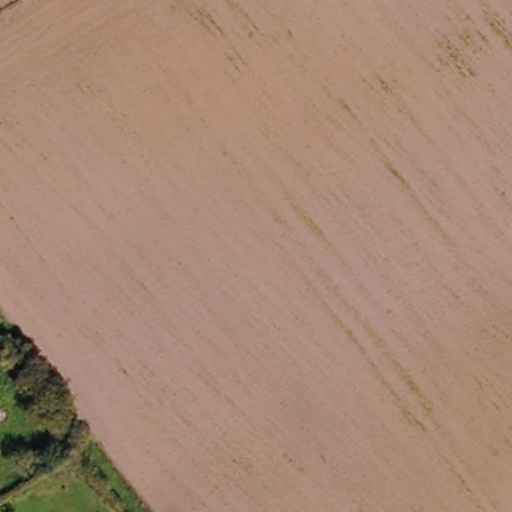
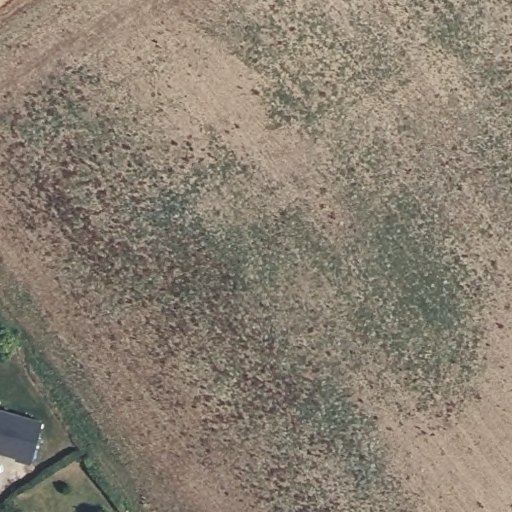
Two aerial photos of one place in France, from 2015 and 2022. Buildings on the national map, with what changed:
new [(41,423),(29,463),(13,459),(14,457),(0,452),(0,411),(41,423)]

